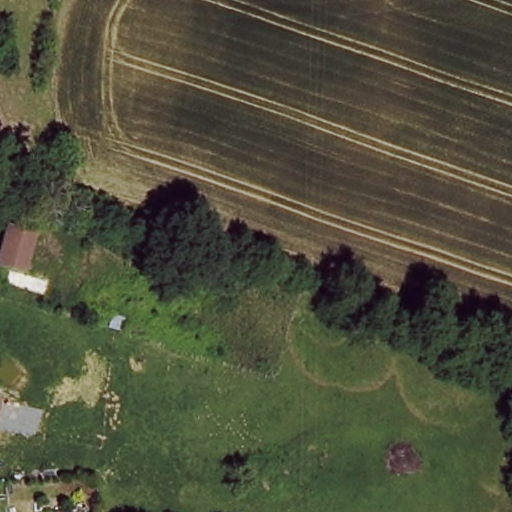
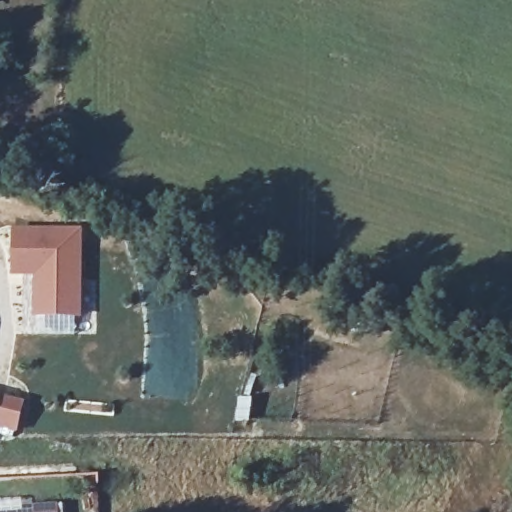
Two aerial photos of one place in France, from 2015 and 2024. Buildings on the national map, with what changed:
demolished [(0,261),(0,259),(11,219),(41,230),(30,269),(0,261)]
new [(84,230),(83,318),(35,318),(35,278),(12,277),(13,230),(84,230)]
new [(0,404),(0,395),(2,395),(0,404)]
new [(2,395),(26,403),(17,433),(0,428),(0,404),(2,395)]

